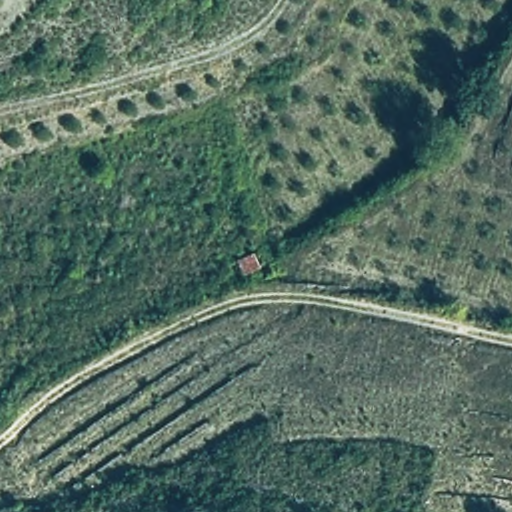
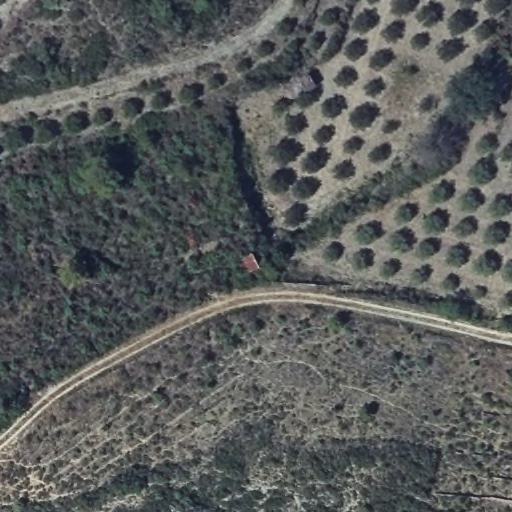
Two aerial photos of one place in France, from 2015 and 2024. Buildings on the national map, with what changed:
unchanged [(262,265),(241,276),(230,257),(251,248),(262,265)]

